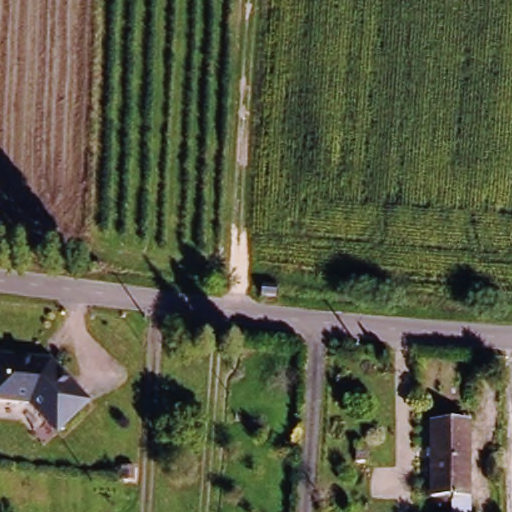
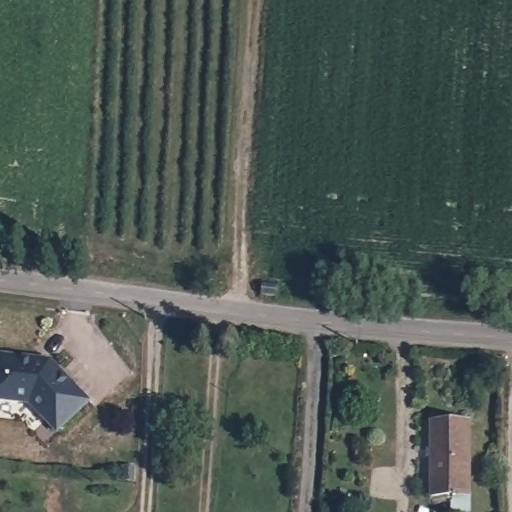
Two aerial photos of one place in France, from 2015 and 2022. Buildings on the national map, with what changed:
unchanged [(57,433),(32,403),(0,400),(0,356),(36,360),(53,361),(90,406),(57,433)]
unchanged [(465,506),(449,506),(451,481),(454,435),(482,436),(479,506),(478,512),(465,512),(465,506)]

